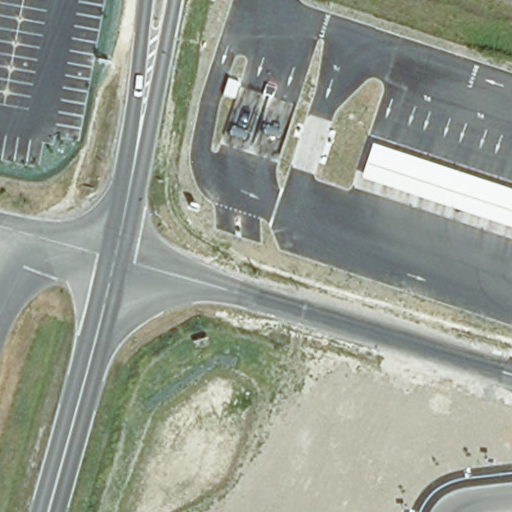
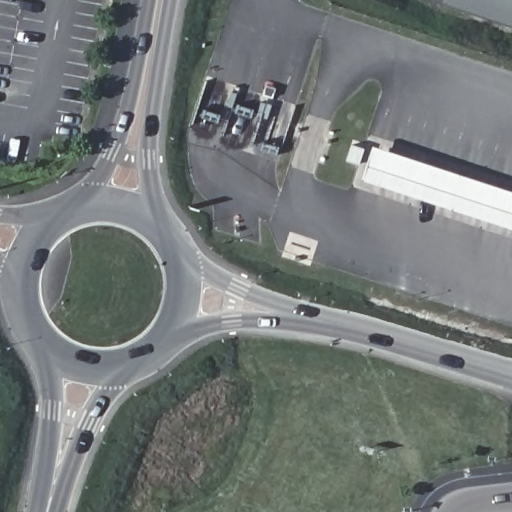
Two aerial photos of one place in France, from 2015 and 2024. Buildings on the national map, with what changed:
new [(441,0),(512,0),(512,25),(441,0)]
unchanged [(362,179),(373,144),(512,191),(512,229),(362,179)]

